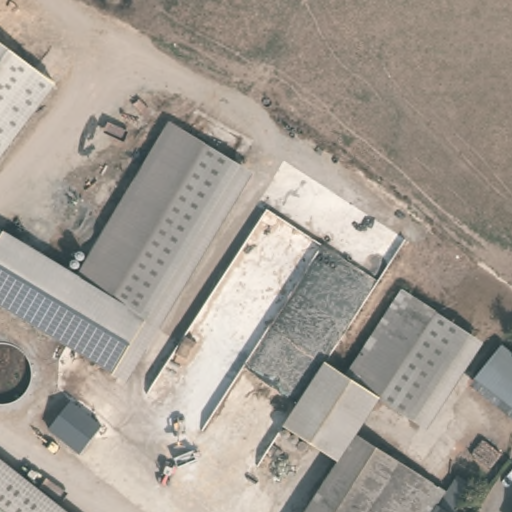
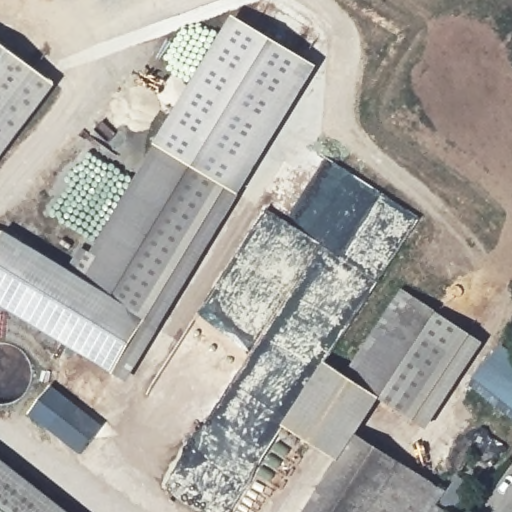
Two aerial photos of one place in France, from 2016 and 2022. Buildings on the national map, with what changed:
new [(241,168),(171,126),(78,280),(64,272),(80,249),(90,252),(233,16),(317,65),(128,382),(116,376),(241,168)]
unchanged [(56,82),(4,151),(0,157),(0,40),(56,82)]
unchanged [(5,236),(78,280),(171,126),(241,168),(116,376),(4,308),(0,306),(0,245),(4,237),(5,236)]
unchanged [(350,375),(405,288),(475,331),(418,419),(384,396),(350,375)]
unchanged [(501,347),(512,354),(512,408),(476,385),(501,347)]
unchanged [(360,434),(341,460),(280,420),(322,358),(350,375),(384,396),(360,434)]
unchanged [(53,425),(66,408),(97,433),(85,450),(53,425)]
unchanged [(341,460),(360,434),(450,489),(436,512),(310,512),(338,466),(341,460)]
unchanged [(460,470),(454,465),(464,448),(476,456),(467,472),(490,490),(476,512),(436,512),(450,489),(460,470)]
unchanged [(53,512),(0,512),(0,470),(53,512)]
unchanged [(512,512),(502,512),(501,510),(512,501),(512,512)]

